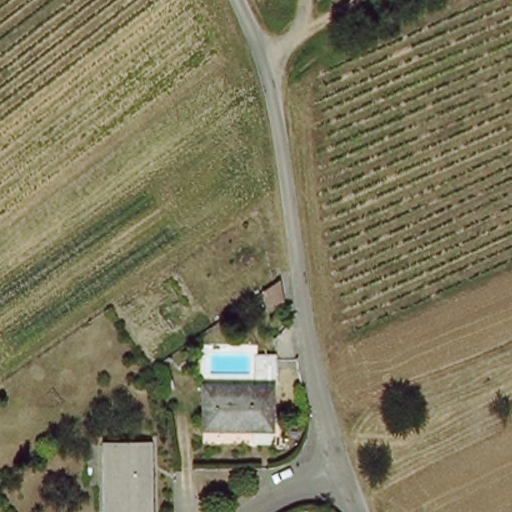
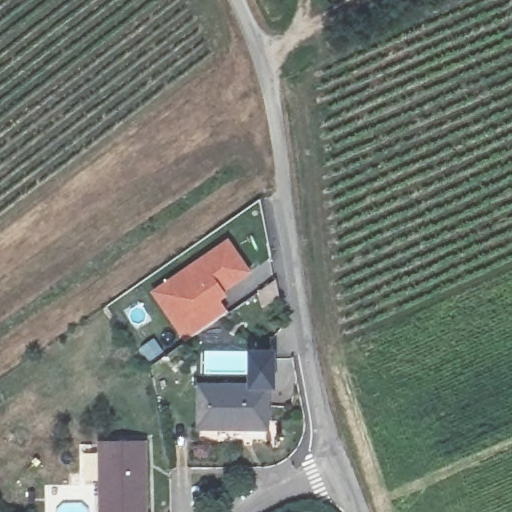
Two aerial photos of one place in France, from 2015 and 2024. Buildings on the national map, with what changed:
new [(220,298),(230,312),(184,343),(152,292),(230,240),(252,274),(220,298)]
new [(250,394),(250,351),(278,350),(279,394),(268,393),(250,394)]
unchanged [(235,437),(205,438),(204,394),(268,393),(270,422),(271,435),(235,437)]
unchanged [(104,441),(144,442),(148,512),(105,512),(104,441)]

